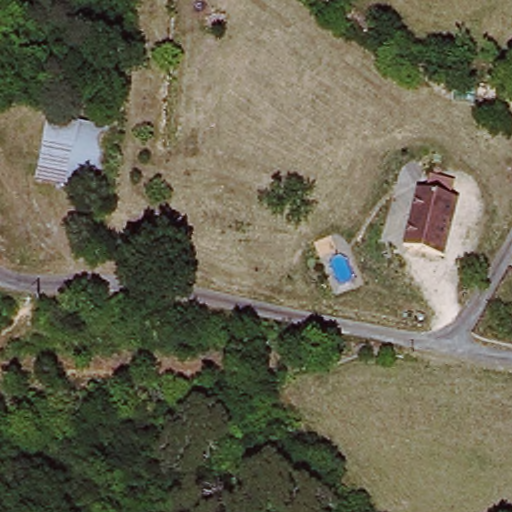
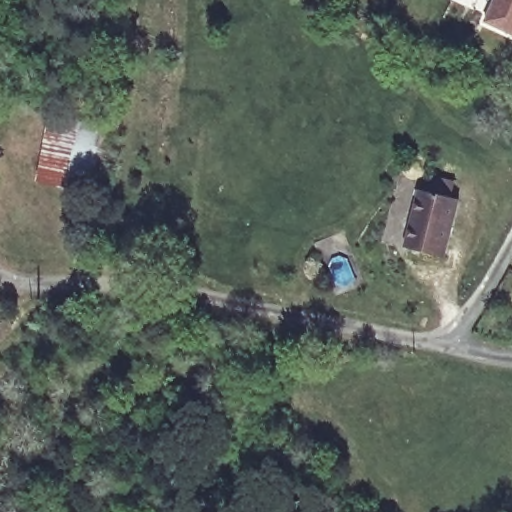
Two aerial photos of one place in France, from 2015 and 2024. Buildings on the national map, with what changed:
new [(512,0),(512,35),(482,21),(491,0),(512,0)]
unchanged [(50,186),(56,125),(86,130),(78,189),(50,186)]
unchanged [(407,245),(413,222),(421,187),(455,195),(461,196),(454,230),(448,255),(407,245)]
unchanged [(512,250),(512,265),(506,262),(512,250)]

